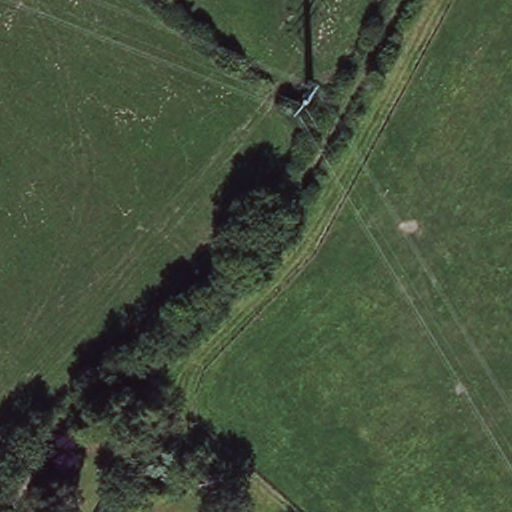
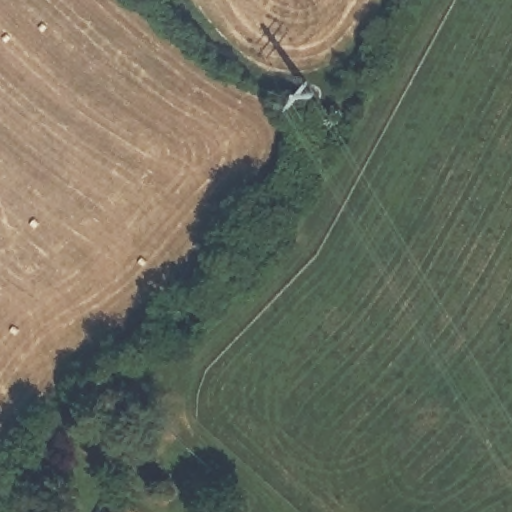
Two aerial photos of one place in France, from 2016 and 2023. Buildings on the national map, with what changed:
unchanged [(103,512),(106,507),(114,512),(103,512)]

